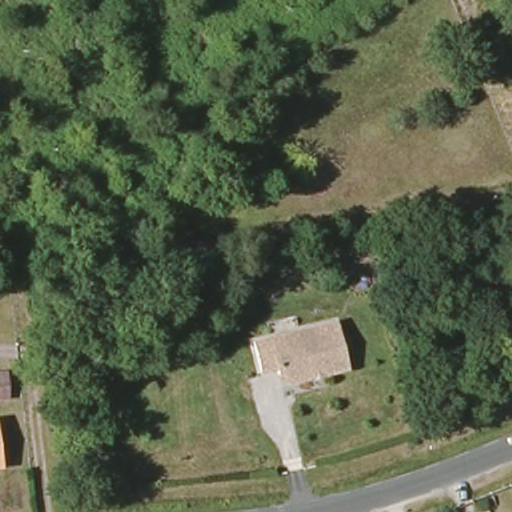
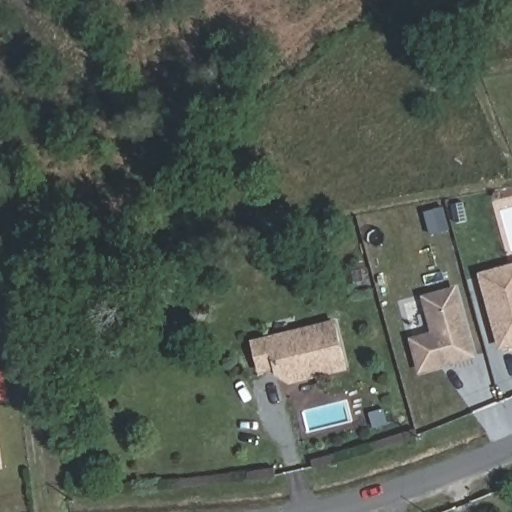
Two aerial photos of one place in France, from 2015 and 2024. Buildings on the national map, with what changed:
new [(500,350),(479,274),(512,264),(512,347),(500,350)]
new [(422,295),(458,285),(477,358),(419,374),(410,338),(433,332),(422,295)]
unchanged [(343,368),(288,381),(274,373),(273,366),(257,370),(250,340),(332,322),(343,368)]

